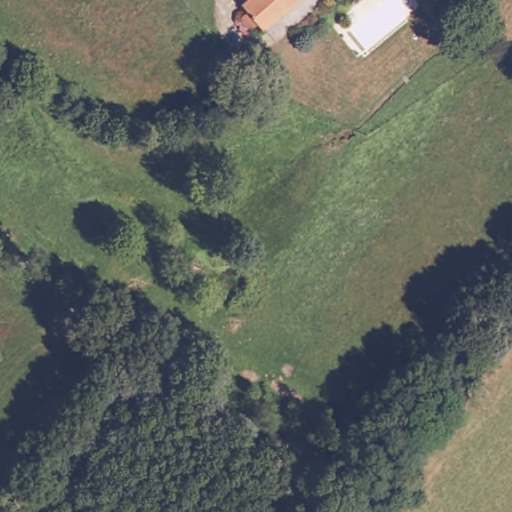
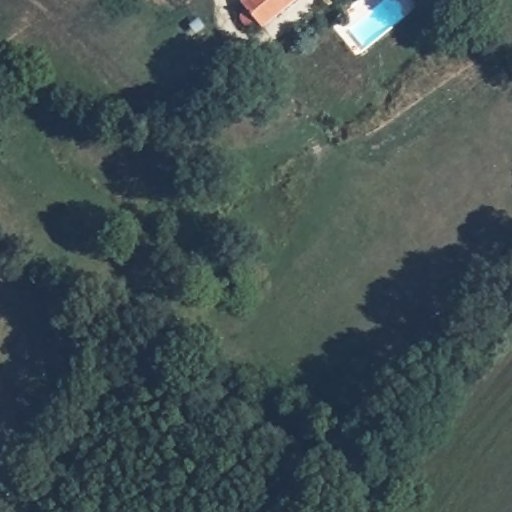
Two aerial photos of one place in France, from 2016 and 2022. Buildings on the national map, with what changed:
unchanged [(258,21),(252,24),(244,15),(249,8),(244,3),(246,0),(297,0),(267,25),(258,21)]

